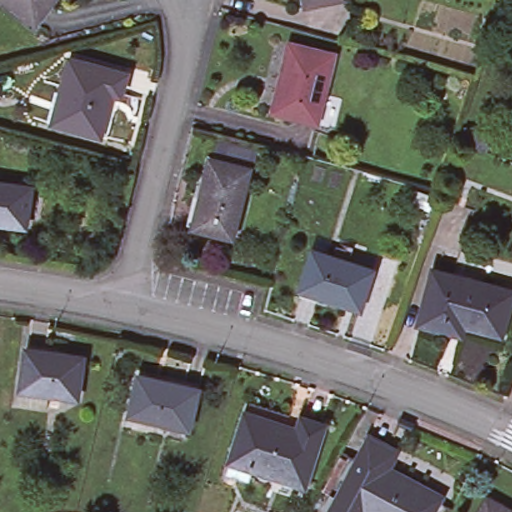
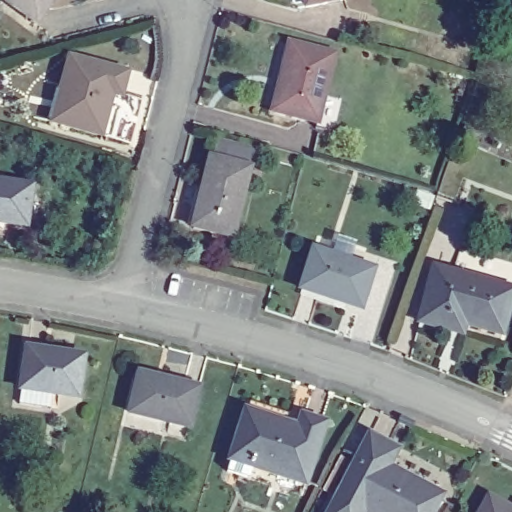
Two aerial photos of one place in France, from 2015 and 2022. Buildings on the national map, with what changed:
unchanged [(0,0),(50,0),(32,25),(0,1),(0,0)]
unchanged [(305,9),(303,0),(344,0),(345,1),(305,9)]
unchanged [(290,41),(333,52),(317,120),(277,108),(272,107),(275,102),(290,41)]
unchanged [(47,117),(55,85),(60,86),(69,54),(125,69),(120,91),(108,89),(107,96),(110,97),(102,130),(60,120),(52,118),(47,117)]
unchanged [(246,170),(229,236),(190,225),(207,159),(246,170)]
unchanged [(23,227),(0,224),(0,183),(30,187),(23,227)]
unchanged [(371,268),(360,306),(300,288),(312,250),(371,268)]
unchanged [(418,320),(433,268),(510,291),(497,333),(447,318),(445,328),(418,320)]
unchanged [(82,353),(76,391),(20,383),(25,345),(82,353)]
unchanged [(197,388),(188,426),(130,412),(138,375),(197,388)]
unchanged [(309,485),(257,470),(253,482),(232,475),(248,417),(252,404),(305,420),(326,426),(309,485)]
unchanged [(363,440),(383,450),(375,467),(437,497),(429,512),(326,512),(363,440)]
unchanged [(487,497),(512,511),(512,512),(479,512),(487,497)]

